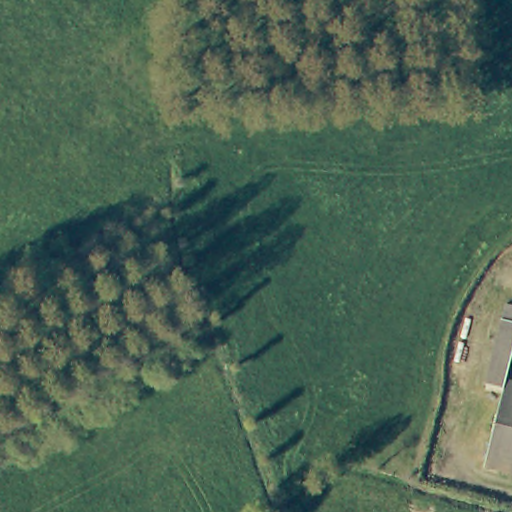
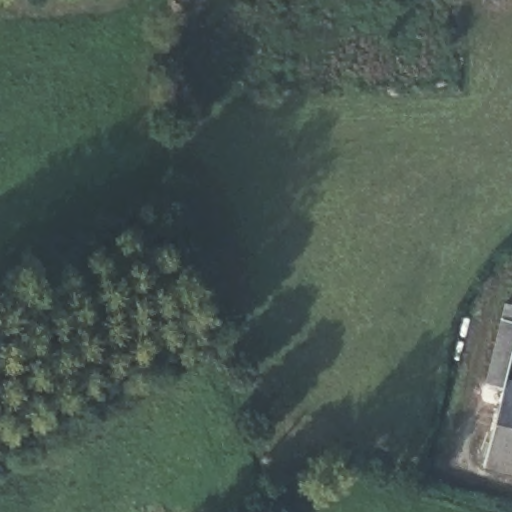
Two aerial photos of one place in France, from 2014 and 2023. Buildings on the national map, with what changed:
unchanged [(499,354),(512,304),(512,358),(499,354)]
unchanged [(512,379),(512,472),(484,464),(503,387),(491,384),(499,354),(512,358),(512,373),(511,378),(512,379)]

